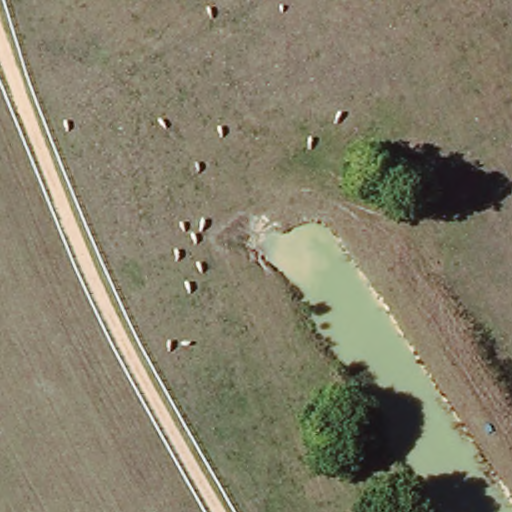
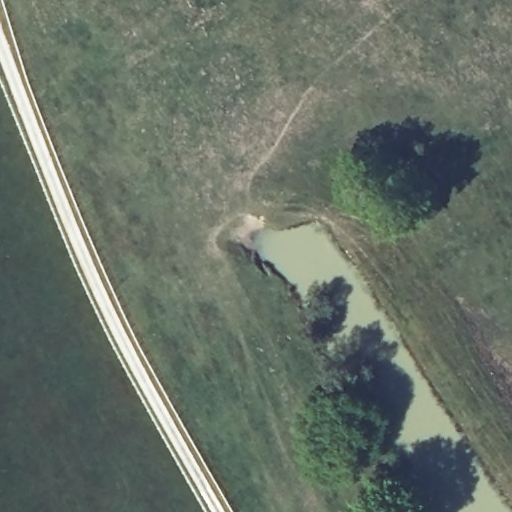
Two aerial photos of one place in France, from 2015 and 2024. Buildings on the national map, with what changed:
[]

